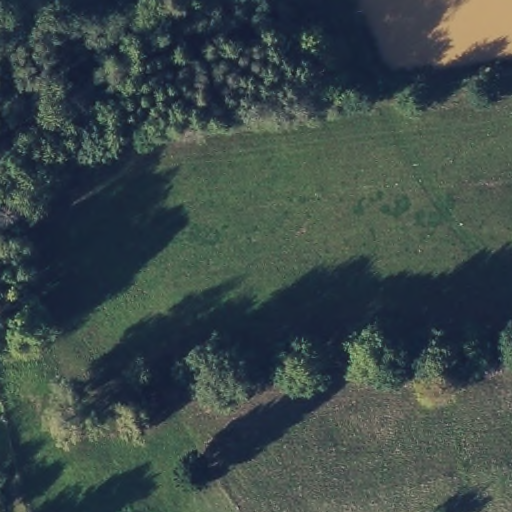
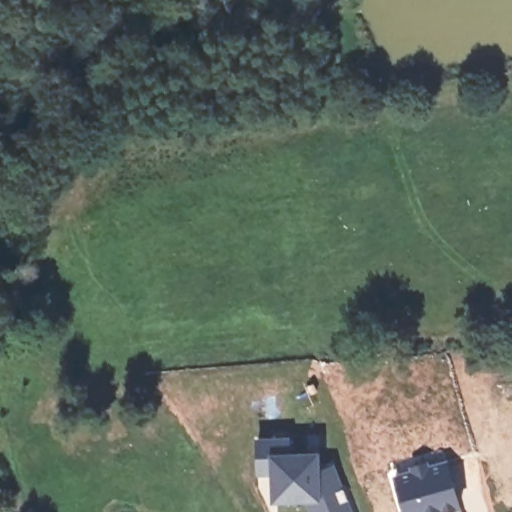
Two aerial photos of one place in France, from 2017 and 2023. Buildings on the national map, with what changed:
new [(290,438),(290,454),(317,454),(317,472),(332,466),(350,512),(312,512),(305,493),(278,494),(278,471),(258,471),(258,438),(290,438)]
new [(409,464),(421,460),(423,464),(442,457),(459,502),(440,509),(441,512),(406,512),(392,476),(410,469),(409,464)]

